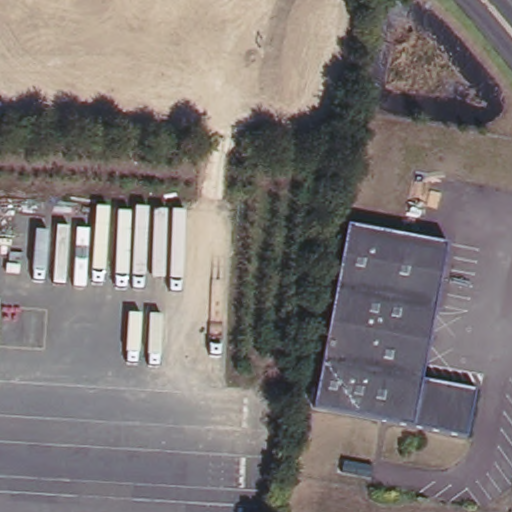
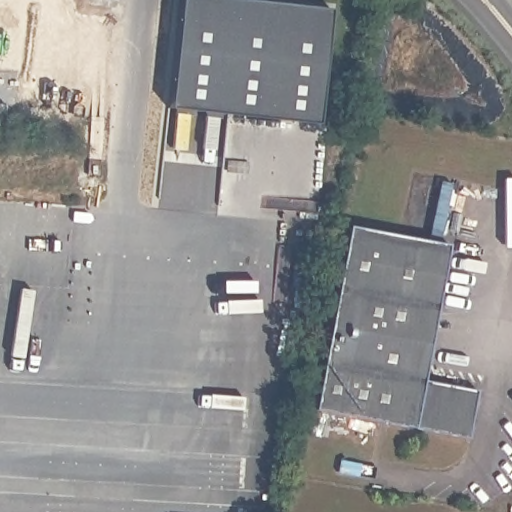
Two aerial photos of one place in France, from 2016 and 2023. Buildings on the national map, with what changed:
new [(321,113),(171,101),(181,0),(296,0),(331,3),(321,113)]
unchanged [(348,221),(449,239),(423,375),(477,385),(468,433),(314,404),(348,221)]

